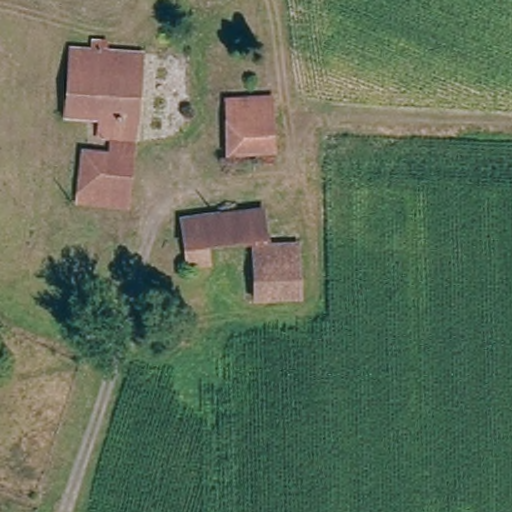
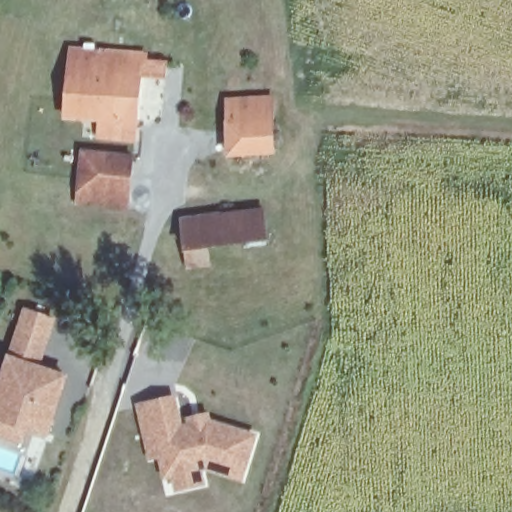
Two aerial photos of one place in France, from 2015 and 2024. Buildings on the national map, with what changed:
unchanged [(69,55),(138,60),(134,139),(97,140),(97,122),(68,120),(69,55)]
unchanged [(278,154),(252,155),(244,159),(243,172),(226,172),(226,92),(277,91),(278,154)]
unchanged [(82,142),(133,146),(131,203),(113,202),(114,193),(101,192),(101,203),(89,201),(89,191),(80,191),(82,142)]
unchanged [(185,267),(184,240),(183,207),(265,206),(265,238),(250,238),(211,240),(210,266),(185,267)]
demolished [(250,238),(298,240),(299,295),(252,295),(250,238)]
new [(22,443),(0,435),(0,379),(8,354),(24,305),(57,317),(41,365),(69,375),(48,436),(28,429),(22,443)]
new [(182,417),(211,411),(212,418),(259,432),(241,482),(202,470),(206,487),(175,493),(172,478),(164,480),(159,457),(148,460),(136,402),(176,394),(182,417)]

